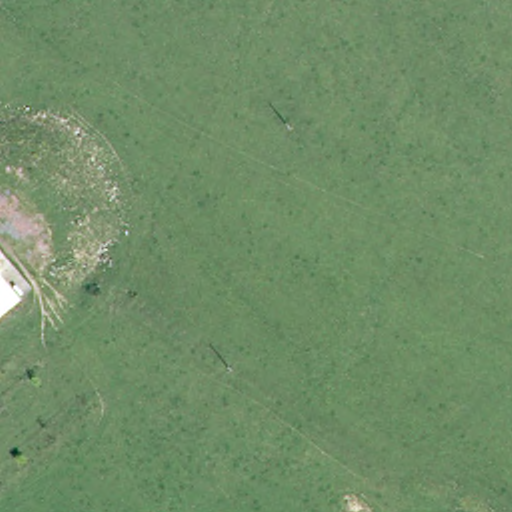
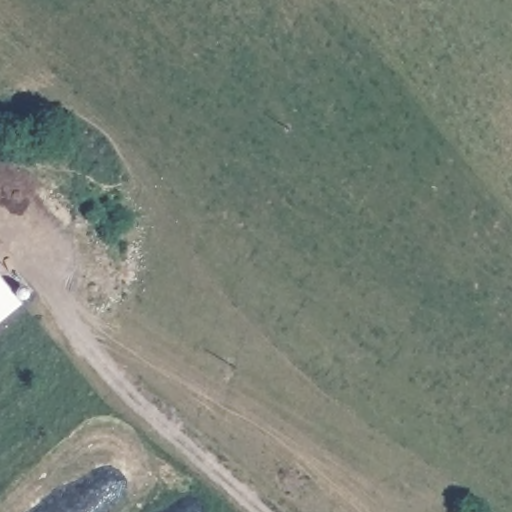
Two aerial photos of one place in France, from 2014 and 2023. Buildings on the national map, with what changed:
unchanged [(0,320),(0,286),(17,307),(0,320)]

